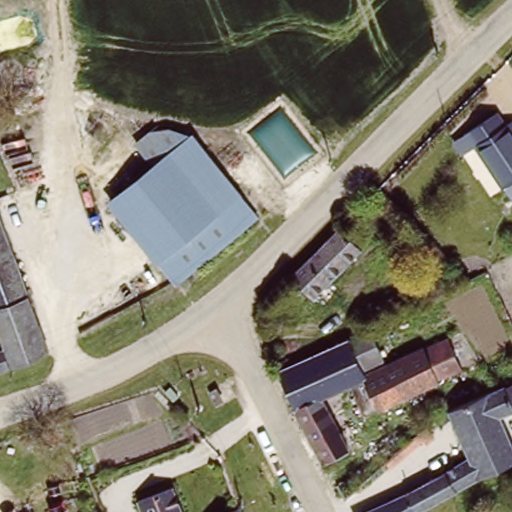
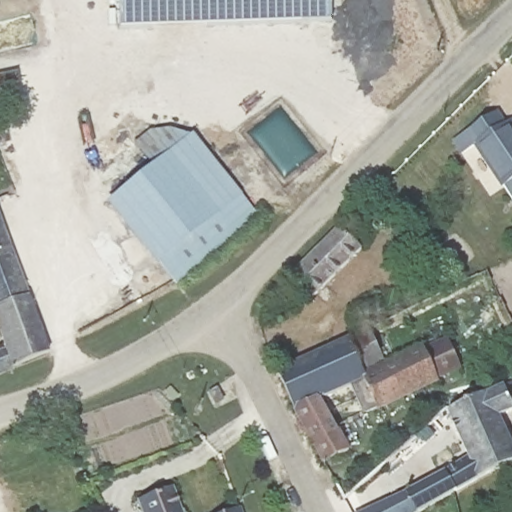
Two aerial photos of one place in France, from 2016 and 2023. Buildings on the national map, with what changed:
new [(118,0),(330,0),(330,21),(119,28),(118,0)]
unchanged [(474,139),(501,125),(508,138),(512,135),(512,197),(505,201),(474,139)]
unchanged [(179,283),(107,215),(143,177),(123,157),(138,140),(145,138),(155,134),(179,145),(249,210),(185,278),(179,283)]
unchanged [(14,241),(0,247),(0,202),(14,241)]
unchanged [(342,231),(361,253),(307,300),(291,282),(342,231)]
unchanged [(0,365),(0,247),(14,241),(50,338),(0,365)]
unchanged [(375,329),(386,362),(452,338),(462,372),(369,410),(353,385),(324,401),(352,447),(327,463),(297,412),(280,367),(375,329)]
unchanged [(512,384),(512,393),(509,386),(512,384)]
unchanged [(453,428),(444,431),(439,420),(501,390),(509,386),(512,393),(512,412),(504,416),(512,433),(512,473),(458,496),(448,500),(419,512),(418,512),(403,485),(466,458),(453,428)]
unchanged [(143,512),(136,497),(174,480),(189,512),(143,512)]
unchanged [(418,512),(352,512),(351,508),(403,485),(418,512)]
unchanged [(207,512),(238,499),(244,512),(207,512)]

